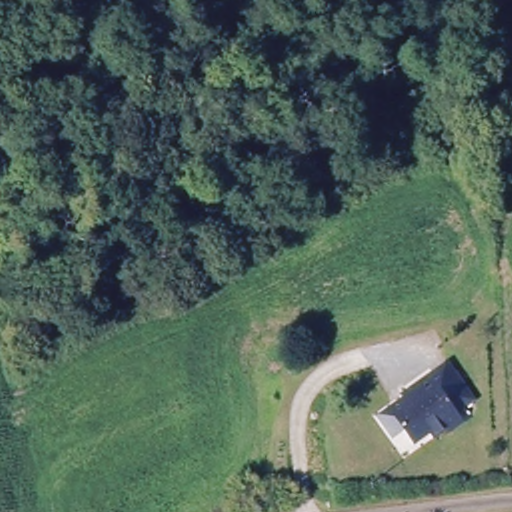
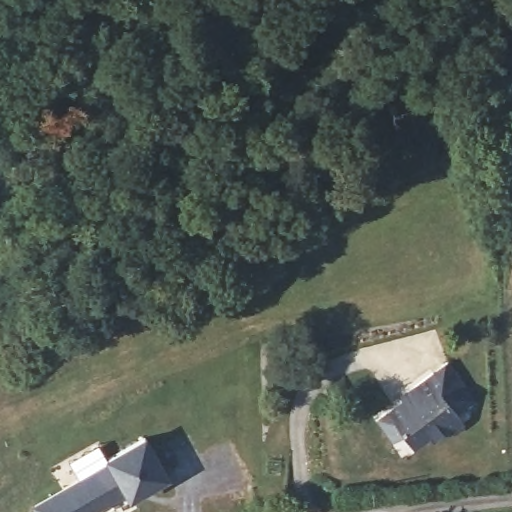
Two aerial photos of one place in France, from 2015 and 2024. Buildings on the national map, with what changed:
unchanged [(408,428),(399,435),(384,413),(419,386),(417,380),(447,357),(474,395),(447,418),(449,423),(434,434),(431,429),(416,440),(408,428)]
new [(125,491),(91,512),(37,512),(33,504),(106,460),(104,455),(145,432),(170,476),(130,499),(125,491)]

